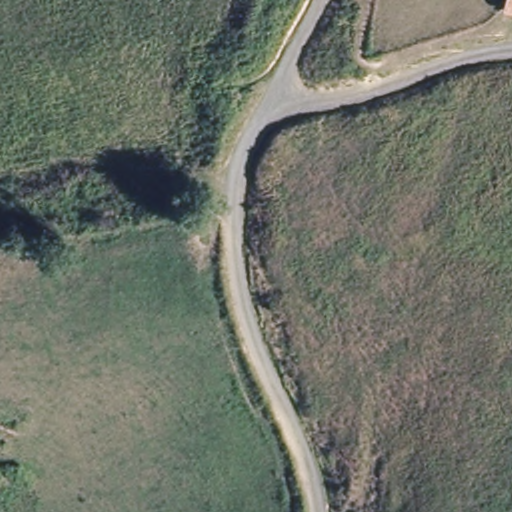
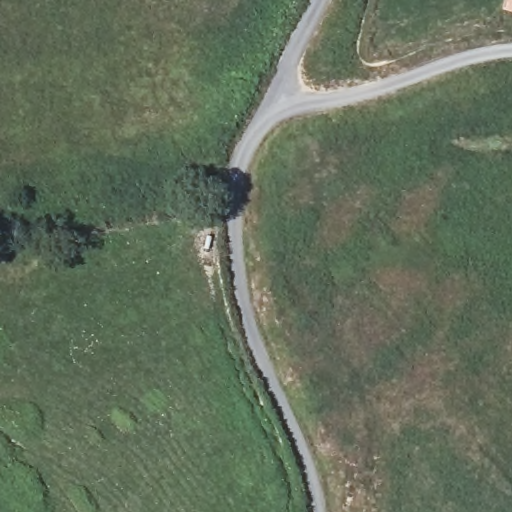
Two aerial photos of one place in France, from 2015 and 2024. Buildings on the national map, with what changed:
unchanged [(497,12),(501,0),(512,0),(512,16),(497,12)]

